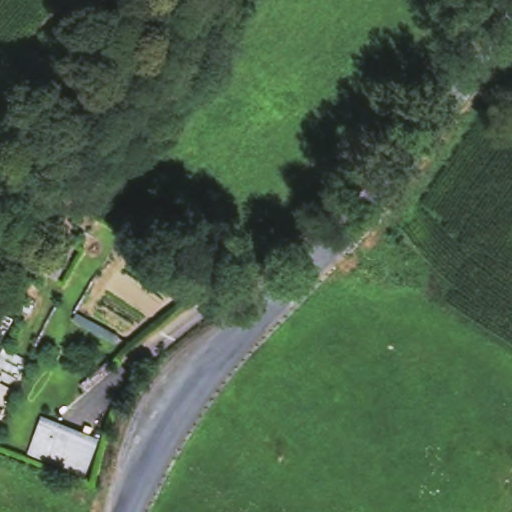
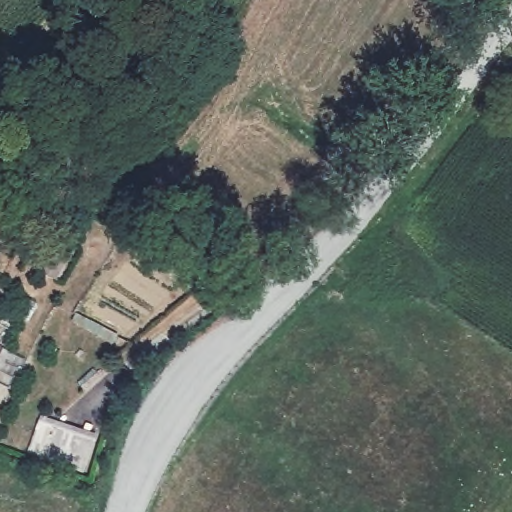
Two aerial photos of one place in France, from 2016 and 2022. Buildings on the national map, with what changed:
unchanged [(47,450),(55,428),(93,442),(85,464),(47,450)]

